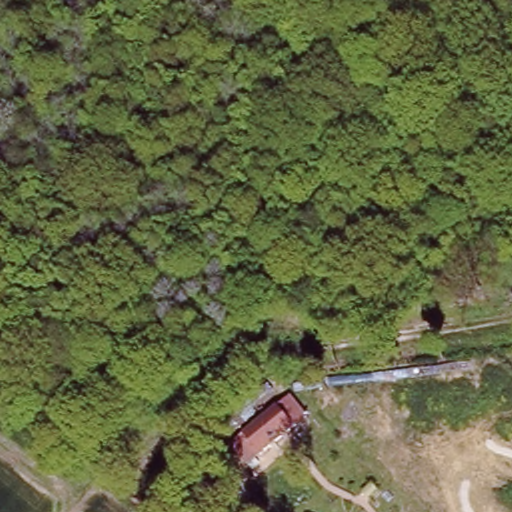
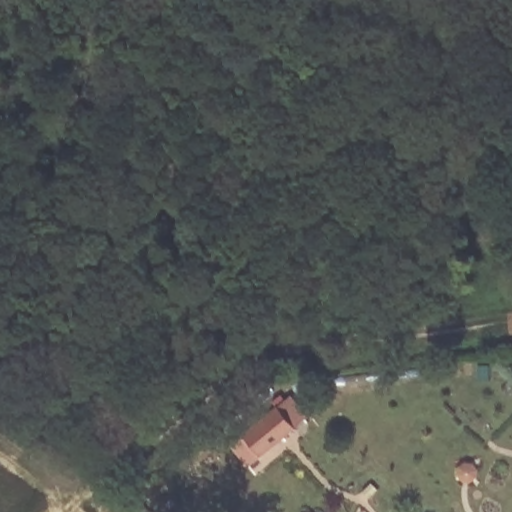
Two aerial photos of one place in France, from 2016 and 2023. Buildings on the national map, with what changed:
unchanged [(227,447),(292,394),(310,416),(293,428),(260,455),(245,468),(227,447)]

